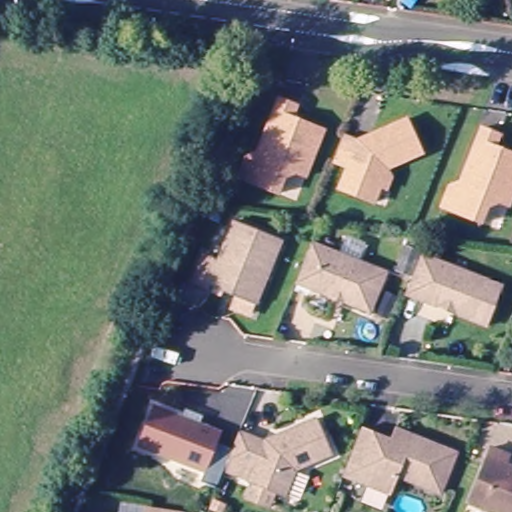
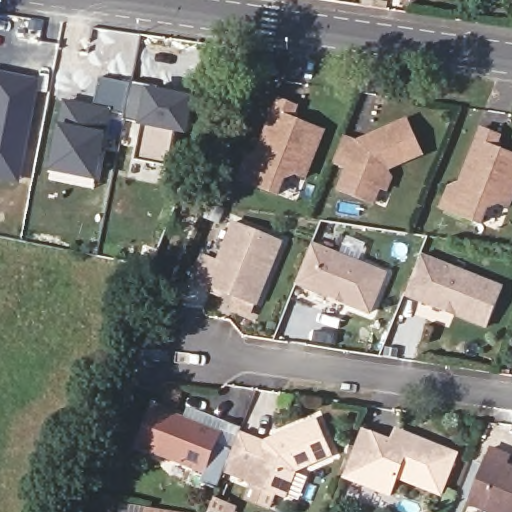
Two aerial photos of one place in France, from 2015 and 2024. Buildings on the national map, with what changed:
new [(17,167),(0,164),(0,75),(34,82),(17,167)]
new [(69,103),(97,108),(103,78),(135,84),(129,115),(112,112),(100,176),(97,189),(54,180),(56,168),(69,103)]
new [(180,130),(173,167),(140,160),(146,124),(128,120),(129,115),(135,84),(135,82),(155,85),(154,91),(196,100),(191,126),(190,132),(180,130)]
unchanged [(243,155),(251,160),(278,102),(297,111),(293,120),(324,135),(304,178),(292,173),(282,179),(275,194),(242,179),(234,175),(243,155)]
unchanged [(391,187),(384,185),(375,204),(341,188),(350,169),(336,162),(347,137),(361,142),(412,121),(427,155),(390,171),(397,174),(391,187)]
unchanged [(452,185),(460,190),(486,130),(507,140),(502,150),(512,154),(512,207),(502,203),(489,209),(483,223),(452,210),(443,205),(452,185)]
unchanged [(261,302),(215,283),(213,288),(198,282),(211,252),(225,257),(240,219),(287,237),(261,302)]
unchanged [(373,315),(298,285),(314,245),(389,274),(373,315)]
unchanged [(422,256),(504,288),(489,327),(407,295),(422,256)]
unchanged [(207,473),(158,455),(141,447),(156,408),(222,435),(207,473)]
unchanged [(243,498),(249,483),(224,473),(229,461),(240,432),(262,441),(263,438),(315,415),(329,448),(295,463),(283,495),(277,492),(270,509),(243,498)]
unchanged [(396,435),(401,436),(403,432),(404,429),(420,435),(462,451),(446,493),(402,476),(395,493),(347,475),(365,426),(395,438),(396,435)]
unchanged [(471,506),(493,451),(512,459),(512,460),(509,468),(512,469),(512,512),(486,512),(471,506)]
unchanged [(229,510),(228,512),(212,512),(215,505),(229,510)]
unchanged [(151,507),(184,512),(150,512),(151,507)]

